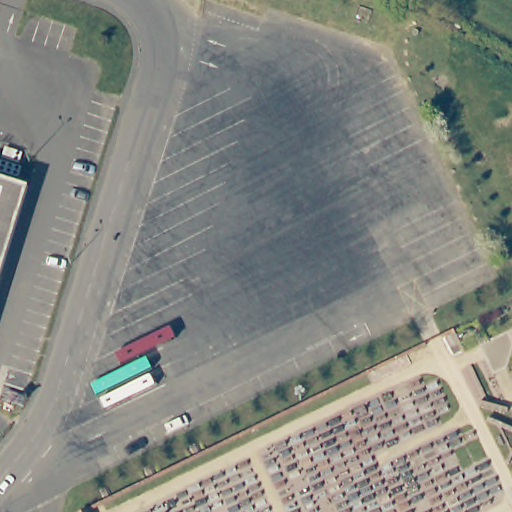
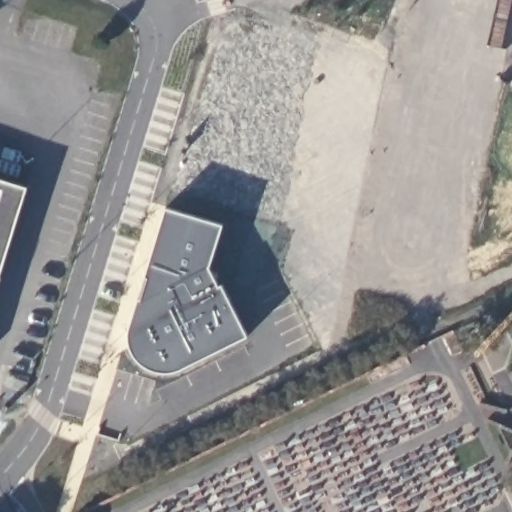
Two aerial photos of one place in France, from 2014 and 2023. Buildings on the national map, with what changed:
unchanged [(25,184),(0,272),(0,177),(25,184)]
new [(226,227),(215,264),(251,334),(189,367),(170,373),(153,369),(142,357),(133,342),(134,328),(173,209),(226,227)]
unchanged [(84,510),(85,512),(81,512),(84,510)]

